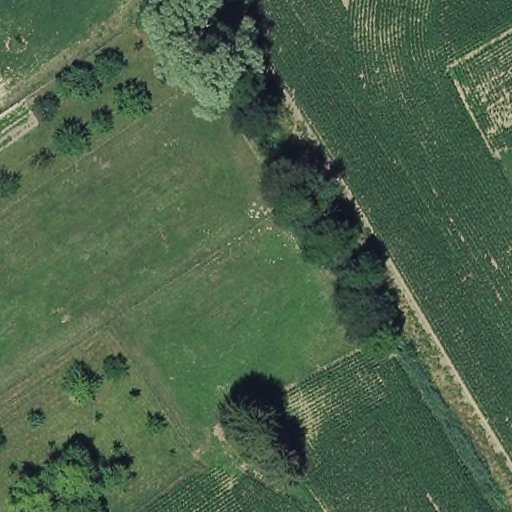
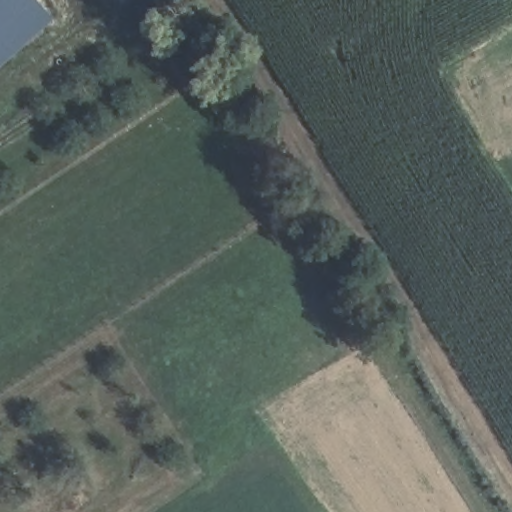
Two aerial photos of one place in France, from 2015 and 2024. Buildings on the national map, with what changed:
new [(53,21),(0,68),(0,0),(35,0),(53,21)]

